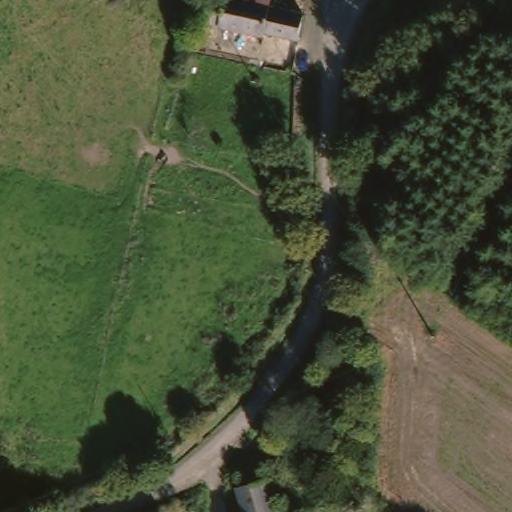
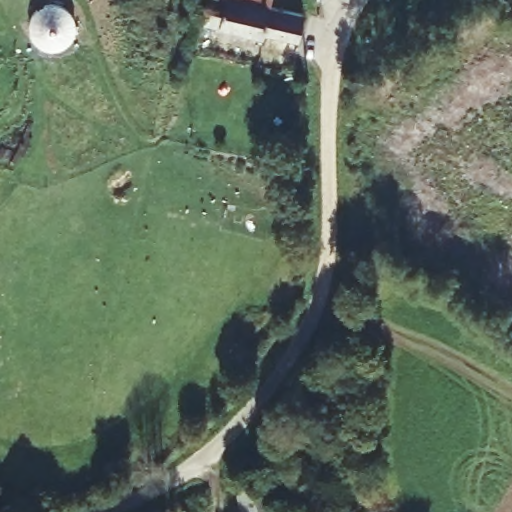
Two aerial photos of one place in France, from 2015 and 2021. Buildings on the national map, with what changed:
unchanged [(229,4),(208,1),(208,0),(269,0),(267,10),(229,4)]
unchanged [(208,1),(229,4),(267,10),(296,15),(306,17),(304,36),(286,33),(286,38),(263,35),(261,45),(201,34),(208,1)]
unchanged [(236,512),(231,493),(258,486),(261,482),(270,512),(236,512)]
unchanged [(159,512),(150,512),(158,509),(159,512)]

